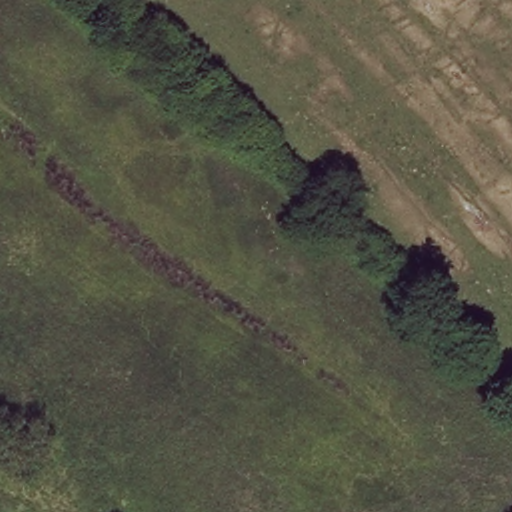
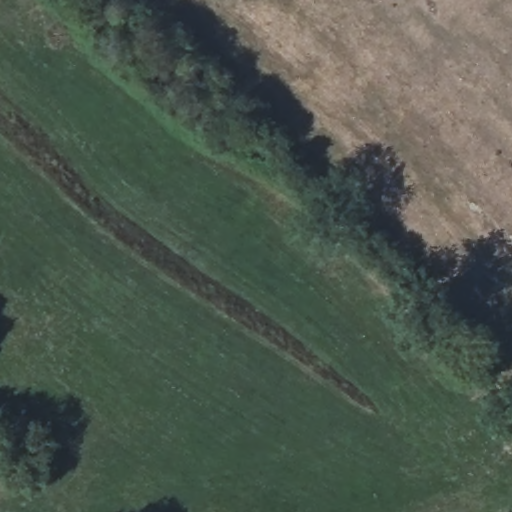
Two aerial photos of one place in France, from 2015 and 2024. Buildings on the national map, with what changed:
[]

